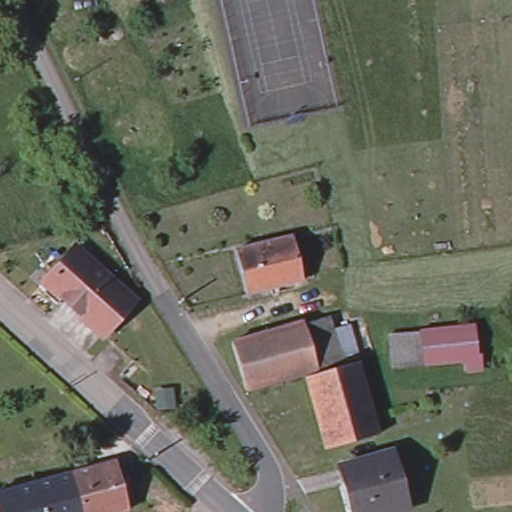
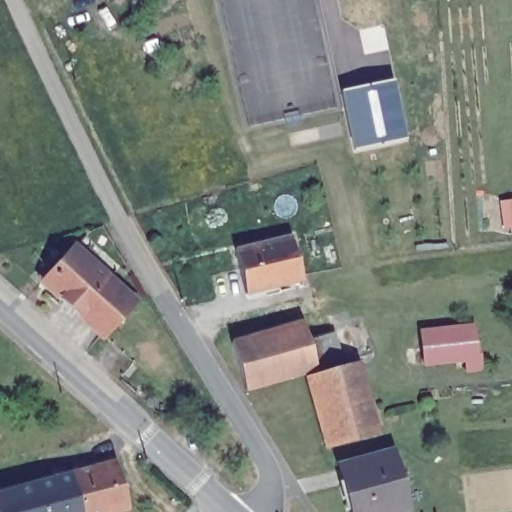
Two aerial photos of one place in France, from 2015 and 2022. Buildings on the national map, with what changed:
new [(407,138),(353,149),(341,90),(394,80),(407,138)]
unchanged [(293,239),(304,282),(248,296),(238,252),(293,239)]
unchanged [(51,284),(45,279),(75,245),(110,277),(79,310),(51,284)]
unchanged [(134,299),(103,332),(79,310),(110,277),(134,299)]
unchanged [(329,315),(332,328),(348,323),(358,357),(314,369),(301,323),(329,315)]
unchanged [(301,321),(301,323),(314,369),(287,377),(274,329),(301,321)]
unchanged [(472,355),(479,354),(479,370),(461,371),(460,360),(418,363),(416,331),(458,329),(470,328),(472,355)]
unchanged [(246,388),(233,339),(274,329),(287,377),(246,388)]
unchanged [(359,358),(372,405),(319,419),(306,373),(359,358)]
unchanged [(372,405),(380,433),(327,447),(319,419),(372,405)]
unchanged [(337,463),(387,450),(394,474),(344,489),(337,463)]
unchanged [(111,458),(125,506),(101,512),(55,512),(44,476),(49,475),(111,458)]
unchanged [(404,507),(385,512),(351,512),(344,489),(394,474),(404,507)]
unchanged [(55,512),(0,512),(0,488),(44,476),(55,512)]

